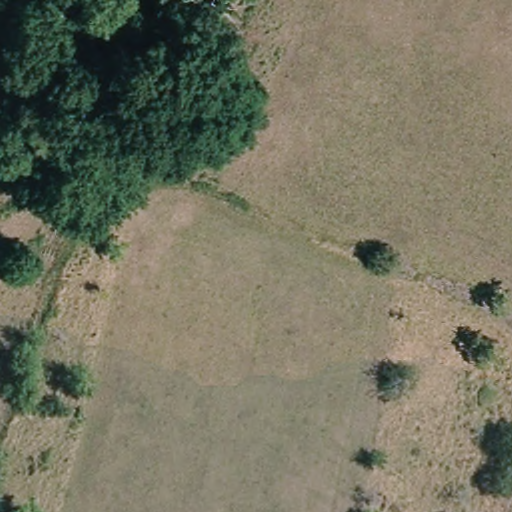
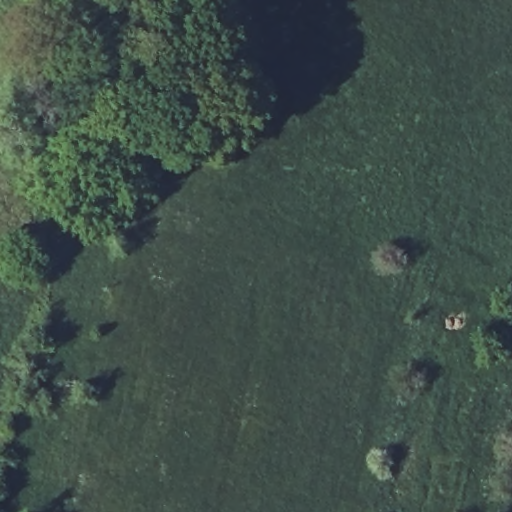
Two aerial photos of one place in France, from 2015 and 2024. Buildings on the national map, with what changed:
[]

